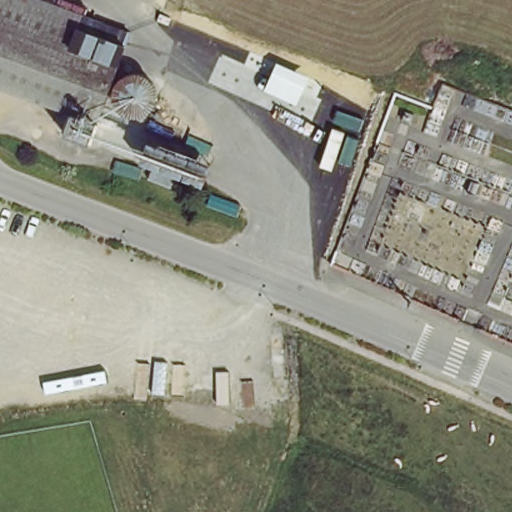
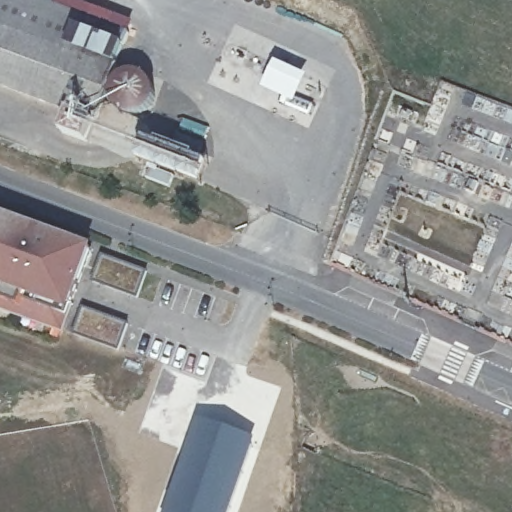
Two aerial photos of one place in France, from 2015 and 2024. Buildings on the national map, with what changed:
unchanged [(68,114),(0,88),(0,0),(40,0),(127,32),(94,124),(87,142),(62,132),(68,114)]
new [(95,247),(70,312),(67,316),(63,332),(0,309),(0,213),(95,247)]
new [(102,254),(148,271),(138,299),(92,281),(102,254)]
new [(83,307),(129,322),(119,351),(73,334),(83,307)]
new [(199,419),(256,439),(231,512),(165,512),(180,463),(199,419)]

